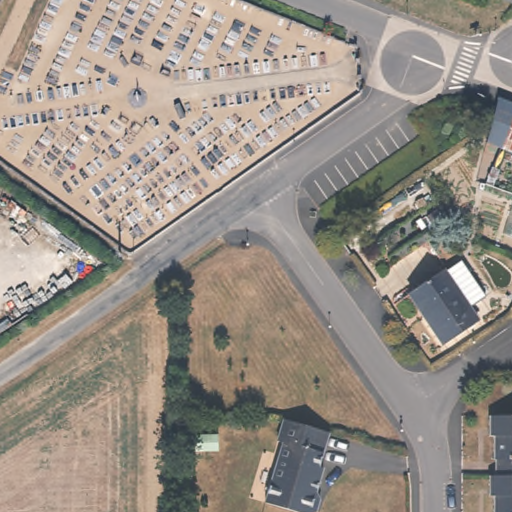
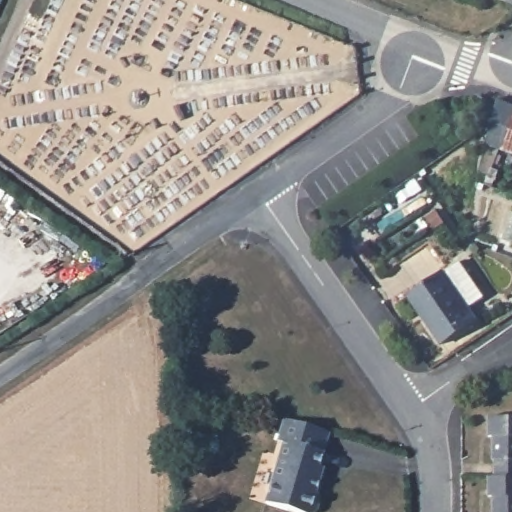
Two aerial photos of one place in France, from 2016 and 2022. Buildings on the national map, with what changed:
unchanged [(497,166),(498,167),(495,173),(490,171),(500,145),(487,140),(492,113),(493,110),(482,109),(483,97),(497,95),(512,101),(512,149),(505,147),(497,166)]
unchanged [(462,259),(486,295),(469,305),(477,318),(442,341),(408,292),(445,268),(446,270),(462,259)]
unchanged [(512,471),(497,471),(497,452),(495,452),(495,429),(491,429),(491,411),(512,411),(512,471)]
unchanged [(320,474),(324,476),(317,498),(321,506),(318,512),(273,512),(266,510),(286,450),(280,447),(287,426),(331,441),(320,474)]
unchanged [(512,512),(495,512),(495,492),(491,492),(491,471),(497,471),(512,471),(512,512)]

